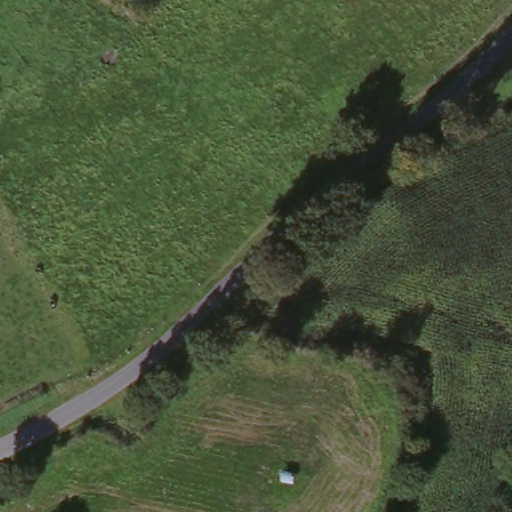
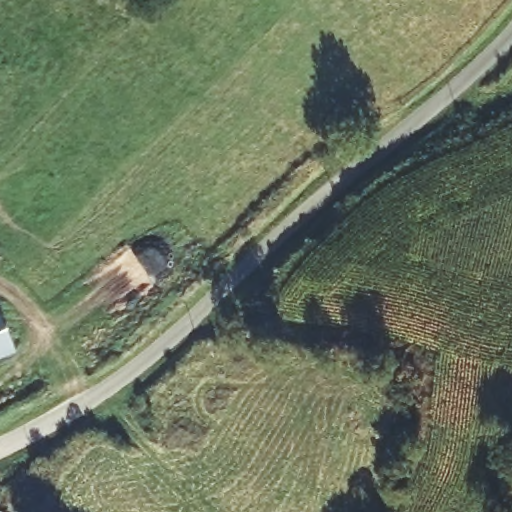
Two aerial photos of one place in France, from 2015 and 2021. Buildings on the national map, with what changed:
new [(15,351),(0,356),(0,317),(15,351)]

